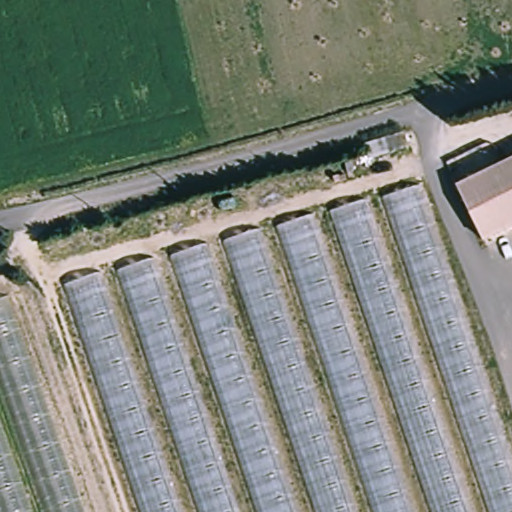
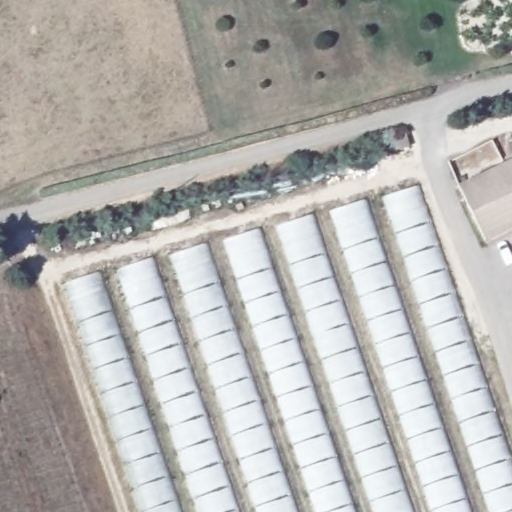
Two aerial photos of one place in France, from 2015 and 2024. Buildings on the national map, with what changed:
unchanged [(461,179),(512,157),(512,222),(486,234),(461,179)]
unchanged [(419,178),(512,459),(512,512),(142,512),(60,275),(419,178)]
demolished [(0,512),(0,294),(2,294),(79,512),(0,512)]

